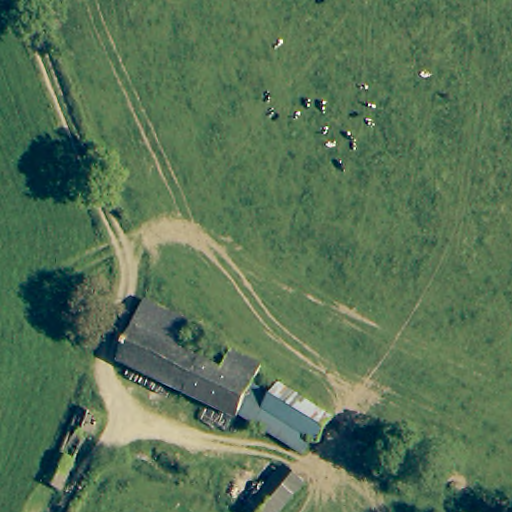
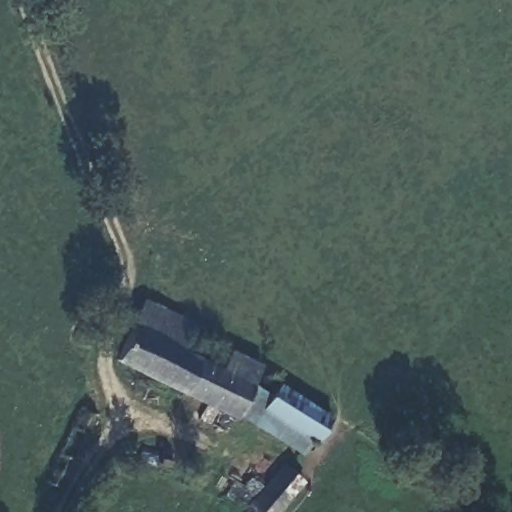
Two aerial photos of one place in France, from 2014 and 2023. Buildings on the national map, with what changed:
unchanged [(187,316),(201,323),(189,348),(228,370),(239,351),(268,367),(267,368),(266,370),(240,417),(120,357),(141,318),(151,297),(187,316)]
unchanged [(99,331),(102,335),(99,345),(92,348),(84,345),(82,338),(85,331),(92,328),(99,331)]
unchanged [(321,405),(322,405),(334,412),(318,435),(269,403),(285,382),(321,405)]
unchanged [(56,457),(83,401),(103,410),(91,430),(65,487),(45,478),(56,457)]
unchanged [(240,505),(277,455),(317,488),(296,512),(250,512),(240,505)]

